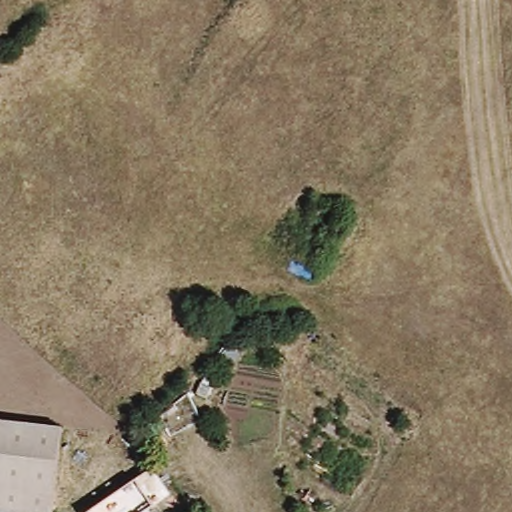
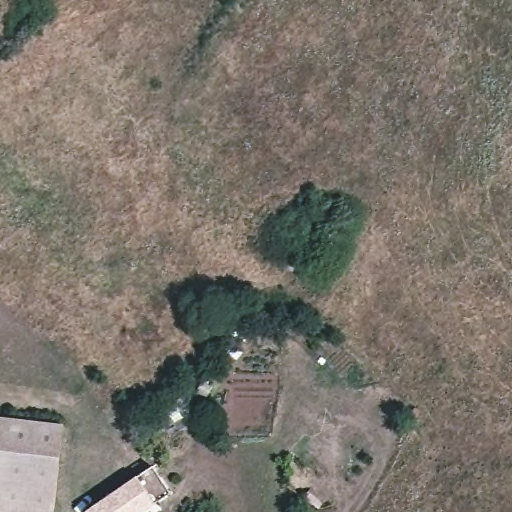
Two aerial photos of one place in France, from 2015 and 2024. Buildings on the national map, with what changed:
unchanged [(51,512),(33,512),(0,508),(0,419),(62,427),(51,512)]
unchanged [(145,512),(87,512),(152,467),(173,494),(145,512)]

